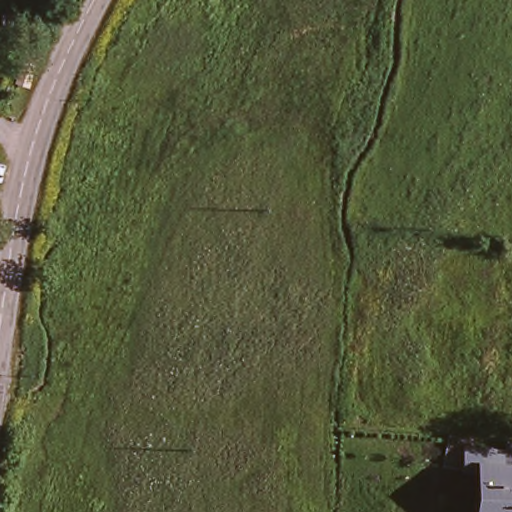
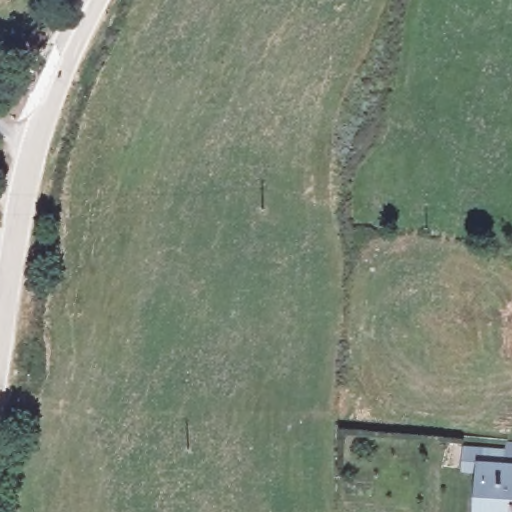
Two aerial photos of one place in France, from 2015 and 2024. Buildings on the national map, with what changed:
unchanged [(471,483),(471,458),(510,460),(511,476),(512,477),(512,512),(486,512),(487,483),(471,483)]

